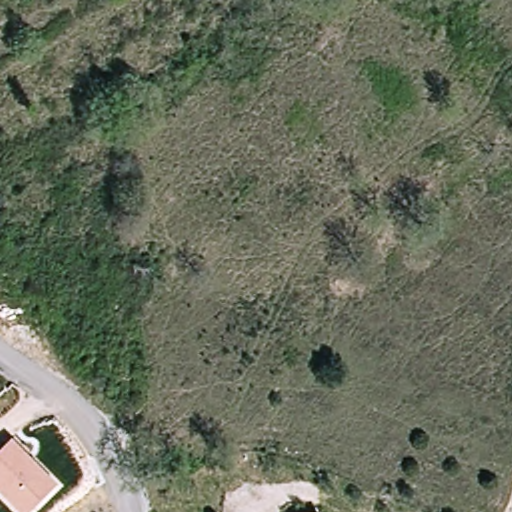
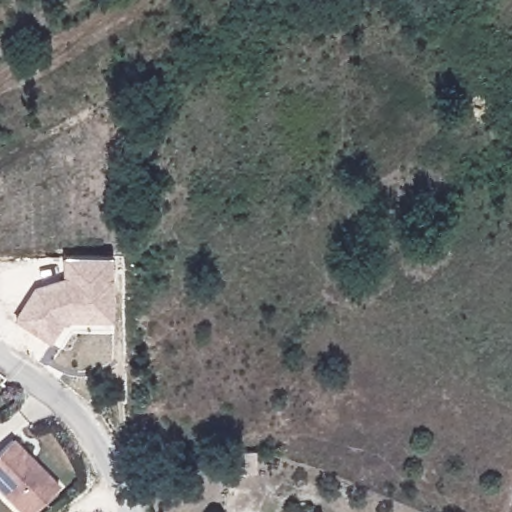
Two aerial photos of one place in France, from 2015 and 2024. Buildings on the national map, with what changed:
new [(64,256),(112,255),(113,318),(65,319),(51,342),(15,319),(36,285),(64,275),(64,256)]
unchanged [(29,512),(18,512),(0,493),(0,451),(11,440),(57,486),(29,512)]

